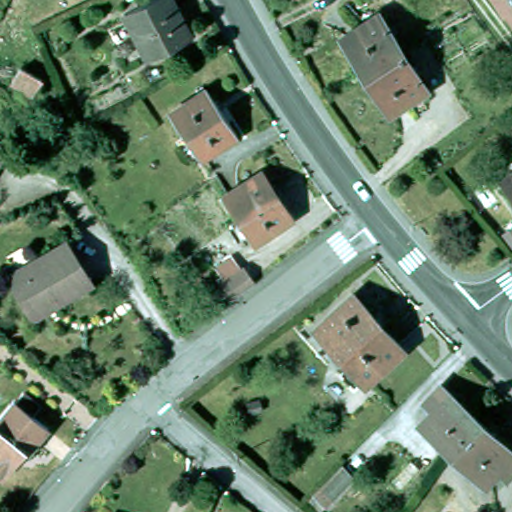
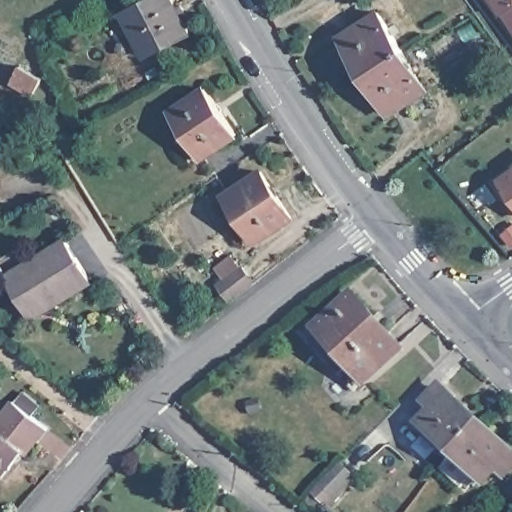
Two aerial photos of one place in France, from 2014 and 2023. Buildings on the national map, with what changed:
unchanged [(159,0),(174,0),(194,36),(149,61),(127,17),(159,0)]
unchanged [(503,18),(492,0),(512,0),(512,20),(509,14),(503,18)]
unchanged [(345,41),(382,18),(407,56),(369,80),(345,41)]
unchanged [(407,56),(430,94),(393,118),(369,80),(407,56)]
unchanged [(32,100),(10,86),(20,69),(42,83),(32,100)]
unchanged [(168,122),(206,97),(236,144),(199,168),(168,122)]
unchanged [(2,155),(0,157),(0,154),(2,155)]
unchanged [(228,199),(265,175),(295,221),(259,246),(228,199)]
unchanged [(512,180),(512,207),(499,189),(512,180)]
unchanged [(33,314),(13,281),(11,278),(38,260),(67,242),(92,283),(59,303),(35,318),(33,314)]
unchanged [(235,302),(223,288),(244,272),(256,287),(235,302)]
unchanged [(367,387),(318,334),(358,298),(405,350),(367,387)]
unchanged [(419,428),(433,414),(427,406),(443,390),(479,426),(449,457),(419,428)]
unchanged [(13,407),(46,433),(28,455),(24,451),(1,480),(0,479),(0,423),(13,407)]
unchanged [(479,486),(449,457),(479,426),(512,460),(512,465),(500,479),(493,472),(479,486)]
unchanged [(337,503),(323,490),(344,468),(358,482),(337,503)]

